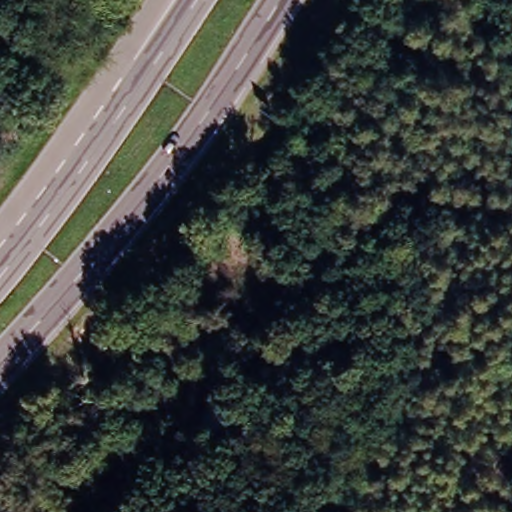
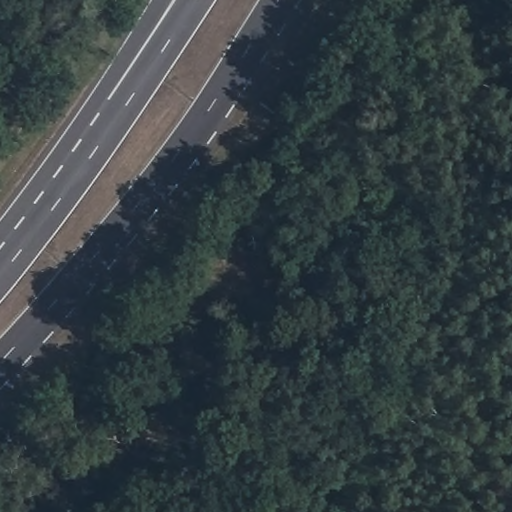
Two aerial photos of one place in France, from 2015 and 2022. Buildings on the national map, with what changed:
[]

